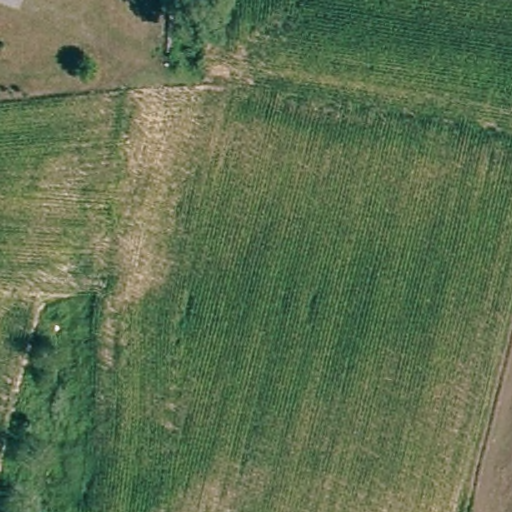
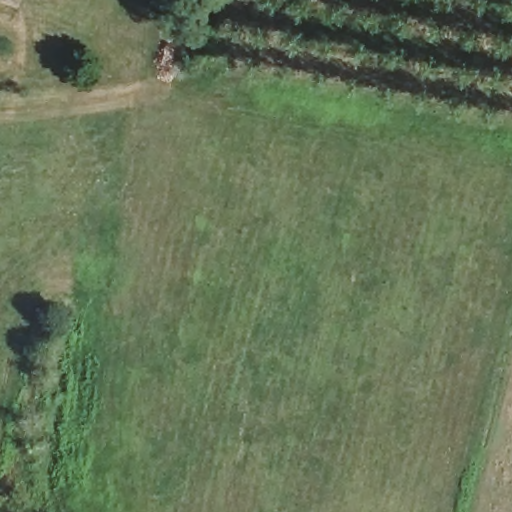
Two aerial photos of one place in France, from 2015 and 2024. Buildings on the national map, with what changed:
[]

